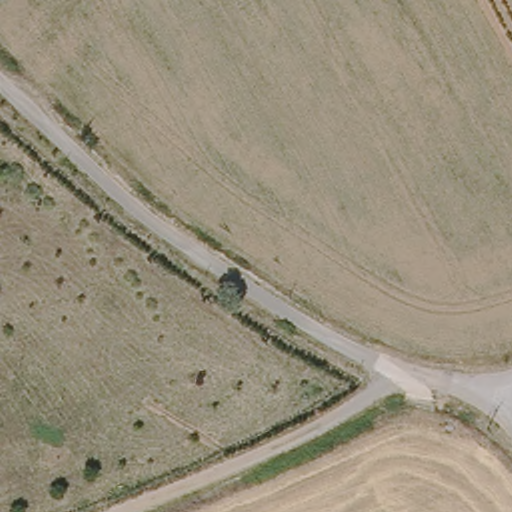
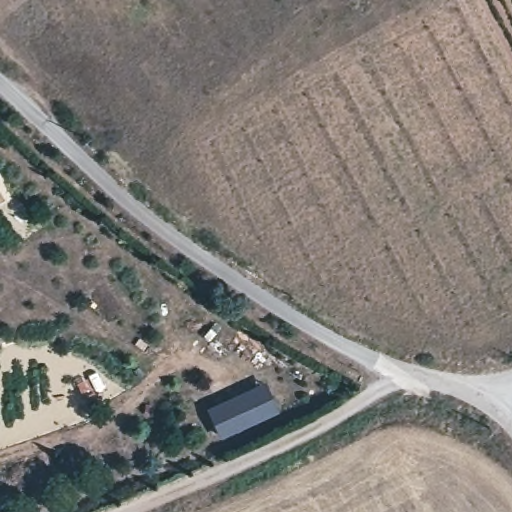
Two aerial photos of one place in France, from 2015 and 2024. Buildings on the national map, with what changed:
new [(265,382),(278,411),(221,437),(208,408),(265,382)]

